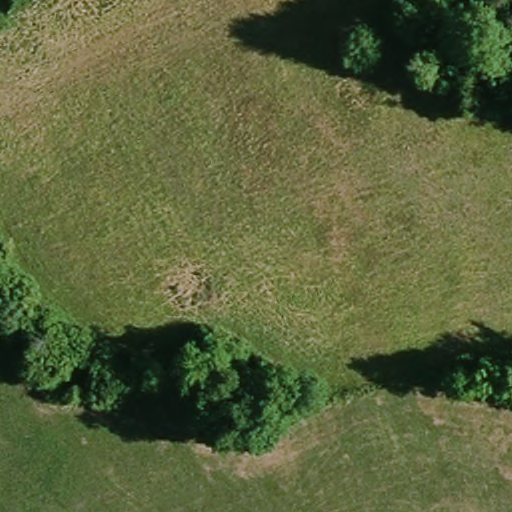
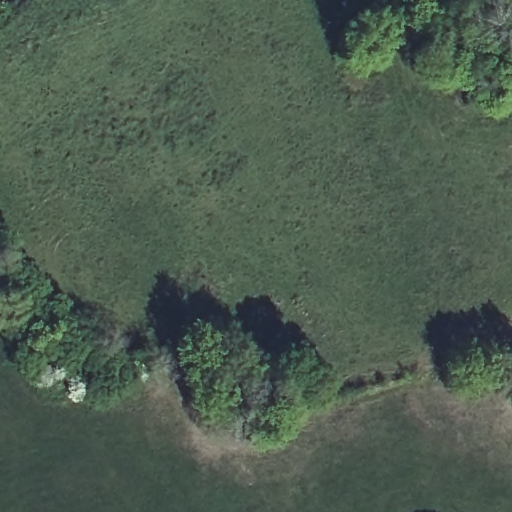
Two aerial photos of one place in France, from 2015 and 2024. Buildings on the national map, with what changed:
unchanged [(512,6),(510,0),(512,0),(512,6)]

